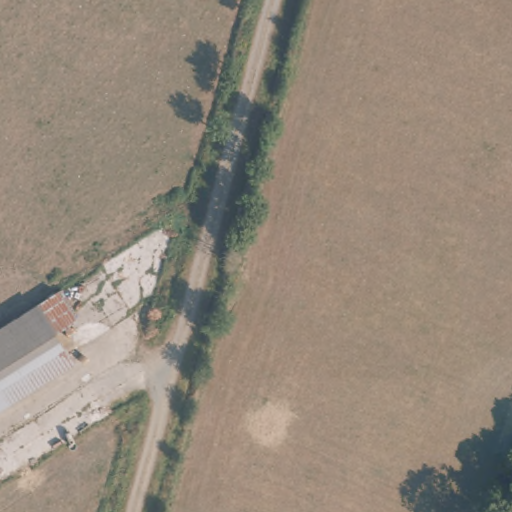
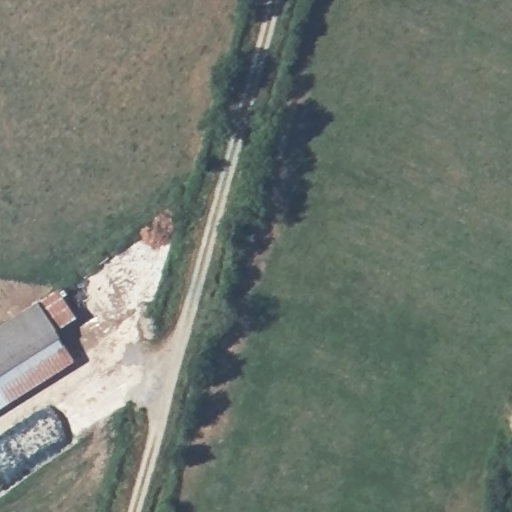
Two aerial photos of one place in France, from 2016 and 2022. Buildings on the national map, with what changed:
unchanged [(40,310),(57,335),(0,371),(0,335),(40,310)]
unchanged [(57,335),(70,357),(0,401),(0,371),(57,335)]

